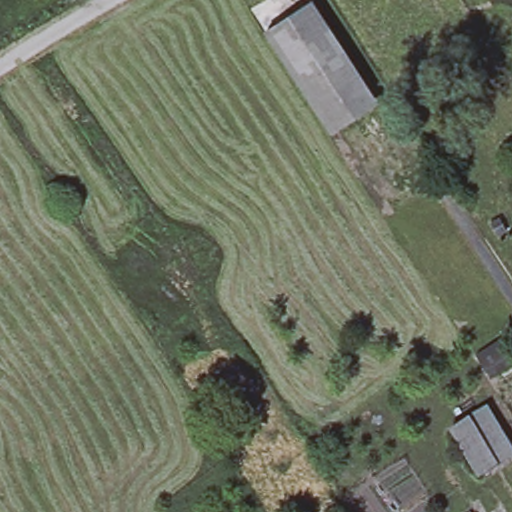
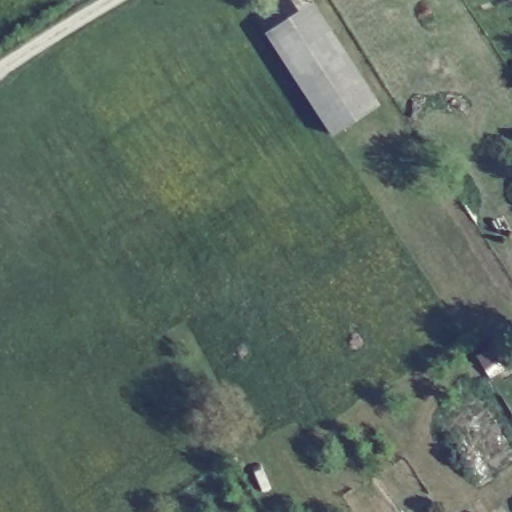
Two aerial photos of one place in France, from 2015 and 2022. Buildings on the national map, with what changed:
unchanged [(380,104),(332,133),(265,32),(313,0),(380,104)]
unchanged [(451,431),(490,404),(512,442),(512,453),(476,472),(451,431)]

